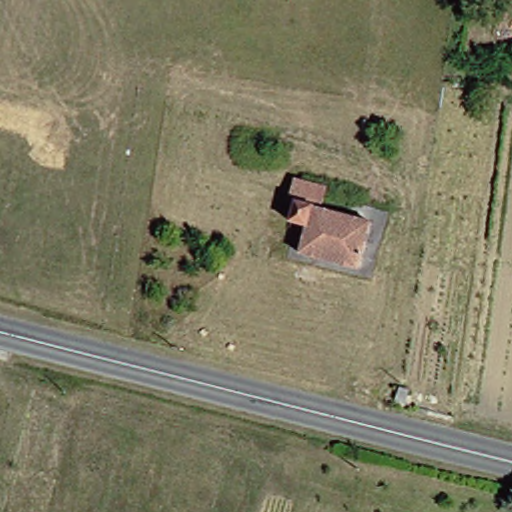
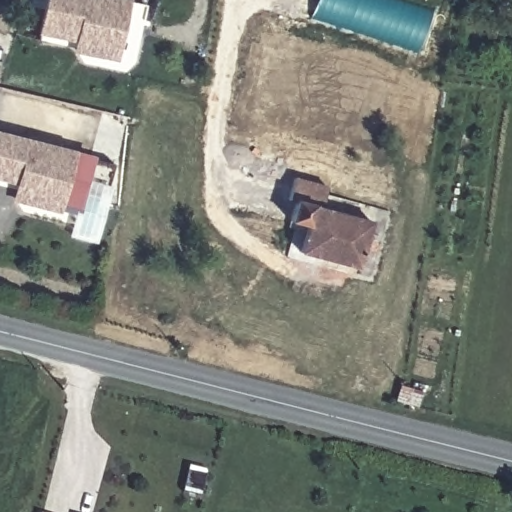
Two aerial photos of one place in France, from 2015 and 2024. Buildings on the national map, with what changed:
new [(45,0),(131,0),(118,64),(71,55),(74,43),(37,37),(45,0)]
new [(317,0),(393,0),(432,14),(417,55),(311,20),(317,0)]
new [(77,153),(59,215),(11,203),(15,184),(0,181),(0,132),(77,153)]
unchanged [(312,209),(362,226),(347,273),(295,253),(300,229),(282,223),(288,205),(277,201),(287,175),(318,186),(312,209)]

